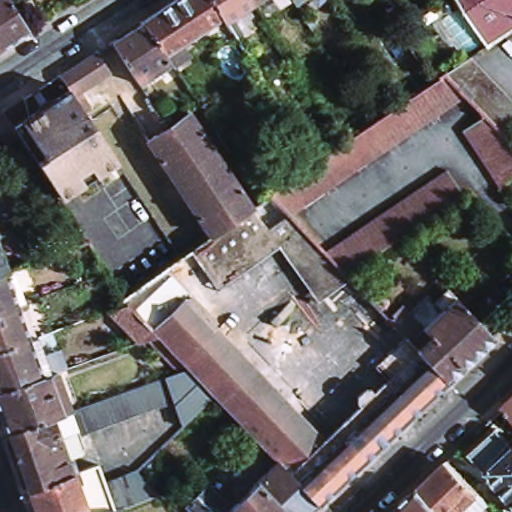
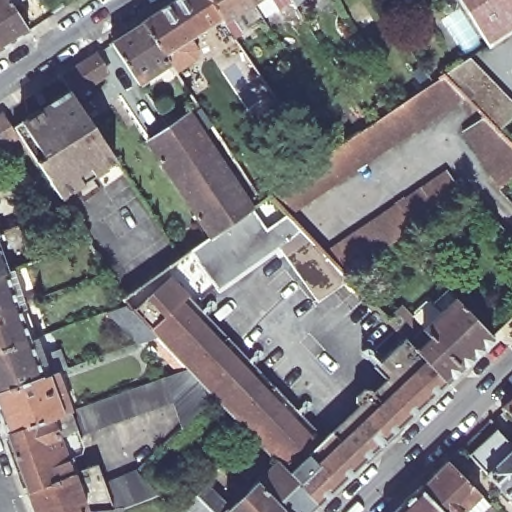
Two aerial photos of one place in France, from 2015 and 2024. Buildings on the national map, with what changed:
unchanged [(0,54),(0,0),(7,0),(30,35),(0,55),(0,54)]
unchanged [(207,0),(221,22),(182,47),(190,58),(170,72),(166,65),(140,26),(180,0),(207,0)]
unchanged [(246,0),(252,9),(224,27),(221,22),(207,0),(246,0)]
unchanged [(246,0),(265,0),(252,9),(246,0)]
unchanged [(445,14),(440,9),(441,2),(447,0),(448,0),(453,5),(452,12),(445,14)]
unchanged [(486,48),(456,0),(512,0),(512,33),(487,51),(486,48)]
unchanged [(140,26),(166,65),(141,80),(144,85),(136,89),(109,46),(140,26)]
unchanged [(72,89),(62,75),(98,52),(109,70),(75,94),(95,125),(99,130),(119,159),(62,197),(21,136),(7,145),(0,134),(0,116),(6,112),(16,127),(30,117),(72,89)]
unchanged [(468,60),(512,104),(512,120),(499,134),(485,118),(465,98),(445,76),(468,60)]
unchanged [(270,200),(269,199),(314,167),(342,147),(370,129),(397,110),(430,85),(445,76),(465,98),(287,219),(270,200)]
unchanged [(145,146),(161,135),(156,128),(160,125),(165,132),(187,118),(251,213),(210,241),(145,146)]
unchanged [(512,147),(512,164),(492,177),(462,134),(485,118),(499,134),(512,147)]
unchanged [(326,258),(446,172),(463,197),(400,242),(346,280),(328,260),(326,258)]
unchanged [(264,452),(214,397),(188,370),(158,339),(129,308),(124,301),(180,261),(171,250),(178,246),(185,257),(210,241),(251,213),(260,206),(270,200),(287,219),(326,258),(328,260),(303,282),(285,254),(201,308),(325,442),(387,383),(376,370),(406,341),(445,385),(317,508),(264,452)]
unchanged [(2,233),(4,240),(0,241),(0,234),(2,233)]
unchanged [(0,275),(0,252),(7,272),(0,275)]
unchanged [(328,260),(346,280),(349,282),(320,308),(303,282),(328,260)]
unchanged [(18,301),(25,300),(27,305),(0,316),(0,275),(7,272),(18,301)]
unchanged [(406,341),(386,322),(399,310),(420,333),(438,316),(431,307),(446,294),(491,341),(445,385),(406,341)]
unchanged [(30,312),(22,315),(32,342),(0,353),(0,316),(27,305),(30,312)]
unchanged [(158,339),(127,350),(110,315),(129,308),(158,339)]
unchanged [(39,360),(57,353),(65,356),(70,370),(0,396),(0,353),(32,342),(39,360)]
unchanged [(70,370),(74,368),(87,407),(7,437),(0,416),(0,396),(70,370)]
unchanged [(7,437),(87,407),(188,370),(214,397),(181,429),(172,405),(76,440),(80,450),(76,457),(65,461),(71,476),(95,467),(102,487),(136,475),(160,499),(131,512),(34,512),(7,437)]
unchanged [(512,399),(512,418),(502,408),(512,399)]
unchanged [(511,448),(512,448),(512,504),(466,456),(493,430),(511,448)]
unchanged [(313,512),(188,512),(185,510),(206,489),(227,510),(269,470),(257,458),(264,452),(317,508),(313,512)]
unchanged [(494,512),(482,512),(478,508),(475,512),(439,512),(417,490),(447,461),(494,512)]
unchanged [(439,512),(394,512),(417,490),(439,512)]

